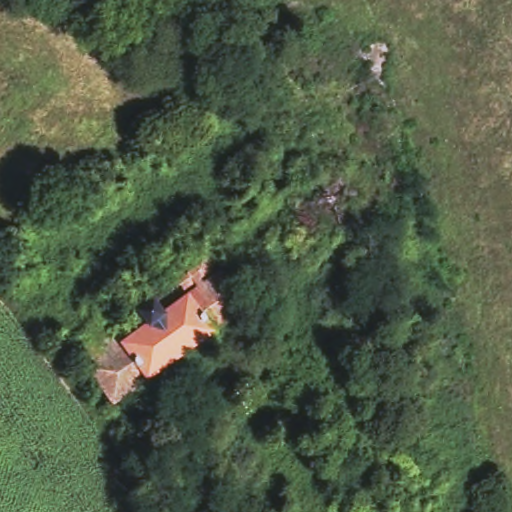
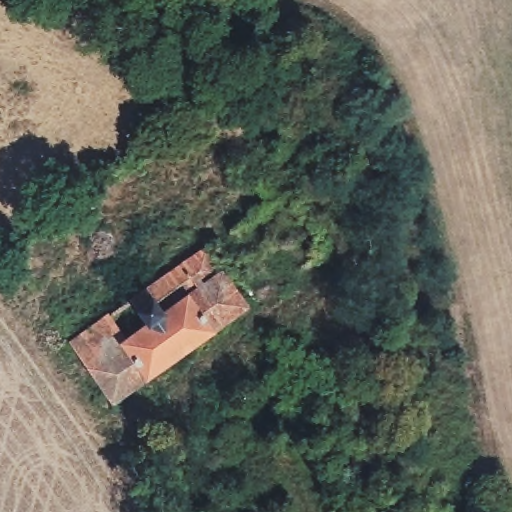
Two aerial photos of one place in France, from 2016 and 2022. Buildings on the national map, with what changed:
unchanged [(72,343),(112,315),(128,339),(148,325),(131,300),(146,290),(208,247),(253,312),(116,407),(72,343)]

